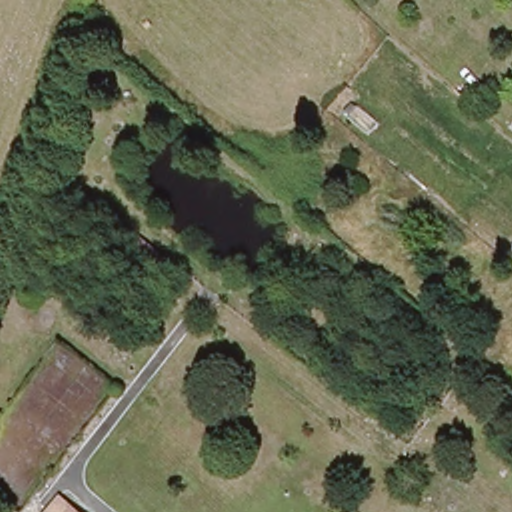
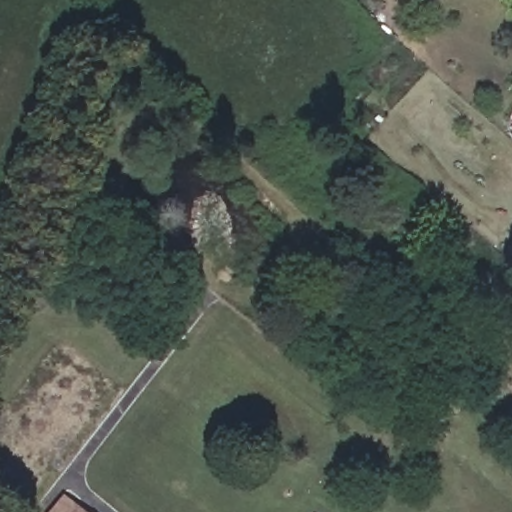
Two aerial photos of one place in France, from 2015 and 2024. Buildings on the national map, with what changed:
unchanged [(42,512),(59,492),(83,512),(42,512)]

